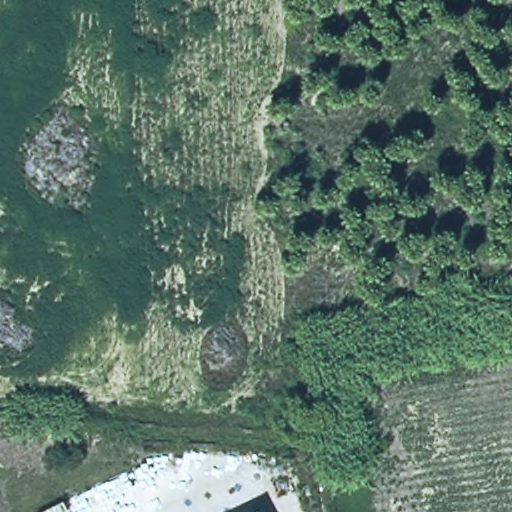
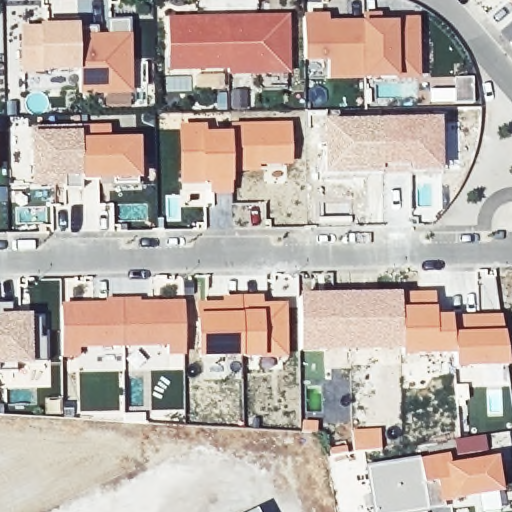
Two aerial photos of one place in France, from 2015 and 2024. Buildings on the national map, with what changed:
new [(506,0),(512,0),(512,7),(506,0)]
new [(322,56),(299,57),(299,15),(323,14),(323,22),(359,21),(359,74),(323,75),(322,56)]
new [(359,21),(359,14),(375,14),(375,19),(387,19),(411,18),(412,75),(359,75),(359,74),(359,21)]
new [(290,76),(227,77),(227,71),(167,72),(166,18),(287,16),(290,76)]
new [(74,65),(73,25),(90,25),(90,33),(96,34),(104,33),(104,17),(123,17),(124,84),(92,85),(92,88),(74,88),(74,65)]
new [(18,66),(17,25),(57,24),(57,18),(73,18),(73,25),(74,65),(18,66)]
new [(429,88),(453,87),(452,77),(473,76),(474,104),(429,104),(429,88)]
new [(215,92),(231,92),(231,88),(249,88),(249,108),(215,109),(215,92)]
new [(441,119),(441,173),(398,173),(324,175),(322,123),(441,119)]
new [(291,122),(292,165),(260,166),(260,172),(237,173),(235,123),(291,122)]
new [(205,123),(206,135),(232,133),(232,194),(209,195),(209,185),(179,186),(177,123),(205,123)]
new [(82,127),(110,125),(110,138),(140,138),(140,182),(80,182),(82,127)]
new [(82,127),(80,182),(80,191),(64,191),(64,187),(30,188),(29,129),(82,127)]
new [(401,293),(400,352),(300,353),(298,296),(401,293)]
new [(401,293),(435,293),(435,316),(454,316),(452,356),(400,357),(400,352),(401,293)]
new [(263,294),(264,303),(287,303),(288,358),(236,360),(235,339),(197,341),(196,299),(263,294)]
new [(140,297),(140,300),(184,300),(185,356),(167,357),(165,347),(81,351),(81,357),(61,358),(60,302),(140,297)]
new [(32,365),(0,367),(0,305),(8,305),(8,314),(31,315),(47,314),(49,363),(32,365)]
new [(473,386),(472,384),(459,385),(457,369),(454,370),(452,356),(454,316),(501,313),(508,370),(505,370),(506,385),(473,386)]
new [(381,426),(382,449),(354,451),(352,428),(381,426)]
new [(486,434),(488,453),(456,458),(454,439),(486,434)]
new [(450,464),(496,457),(502,493),(499,493),(502,509),(485,512),(478,512),(475,499),(442,507),(437,482),(423,484),(419,457),(448,453),(450,464)]
new [(423,484),(437,482),(442,507),(427,511),(427,512),(373,512),(365,466),(419,457),(423,484)]

